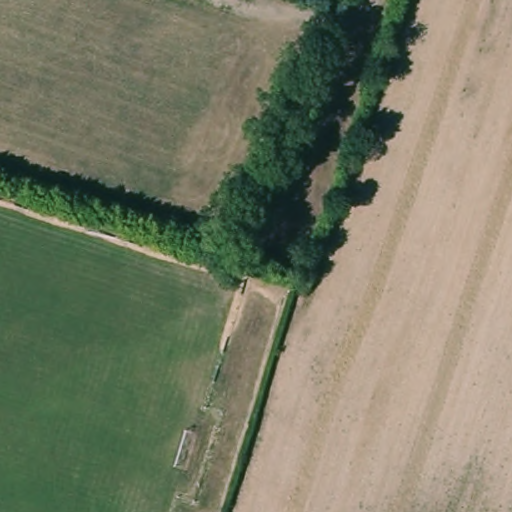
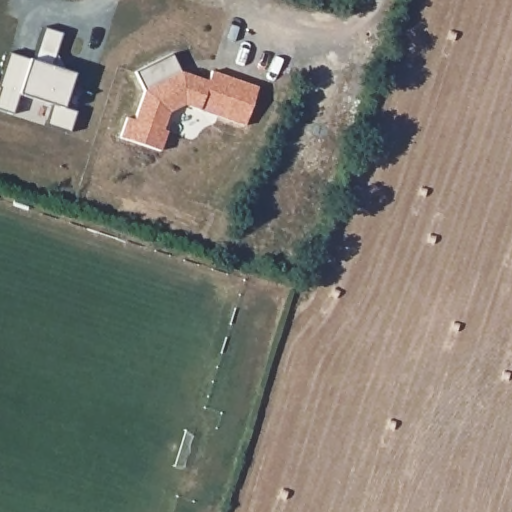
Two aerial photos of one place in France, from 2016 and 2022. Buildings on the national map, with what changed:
new [(52,103),(18,93),(12,113),(0,109),(0,78),(7,52),(29,59),(33,60),(42,27),(62,32),(54,66),(74,72),(62,105),(77,111),(70,132),(45,124),(52,103)]
new [(126,117),(134,119),(145,90),(182,72),(210,81),(212,71),(257,87),(245,125),(198,110),(182,106),(170,113),(162,130),(166,132),(160,151),(120,138),(126,117)]

